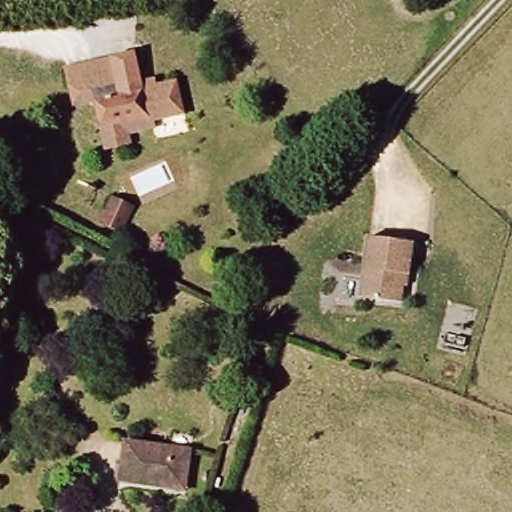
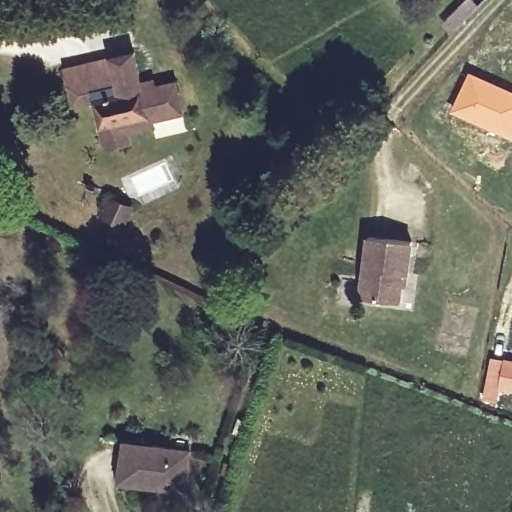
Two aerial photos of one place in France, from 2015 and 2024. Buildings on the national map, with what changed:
new [(473,0),(478,5),(453,32),(442,22),(463,0),(473,0)]
unchanged [(141,51),(145,74),(179,68),(188,113),(165,118),(163,112),(107,123),(102,96),(109,95),(101,58),(141,51)]
unchanged [(109,95),(102,96),(80,99),(73,63),(101,58),(109,95)]
new [(512,92),(512,140),(449,110),(468,70),(512,92)]
unchanged [(136,132),(137,139),(111,143),(107,123),(163,112),(165,118),(166,126),(136,132)]
unchanged [(125,207),(148,215),(141,232),(120,224),(125,207)]
unchanged [(407,275),(404,302),(365,296),(373,235),(415,241),(411,275),(407,275)]
new [(512,360),(512,392),(498,389),(496,402),(480,399),(489,356),(512,360)]
unchanged [(182,498),(118,477),(121,469),(136,430),(199,454),(184,494),(182,498)]

